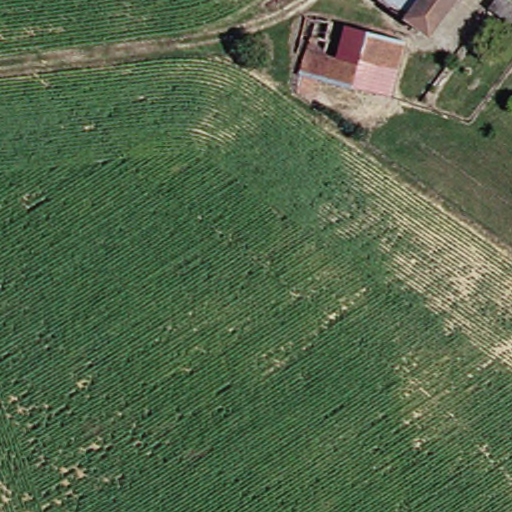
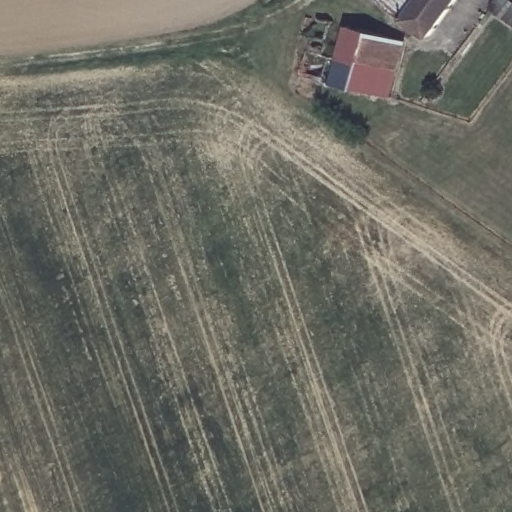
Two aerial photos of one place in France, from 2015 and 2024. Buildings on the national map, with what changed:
unchanged [(378,0),(454,0),(427,36),(378,0)]
unchanged [(486,5),(490,0),(505,0),(512,6),(512,25),(486,5)]
unchanged [(300,75),(313,20),(400,44),(388,83),(384,98),(331,84),(300,75)]

